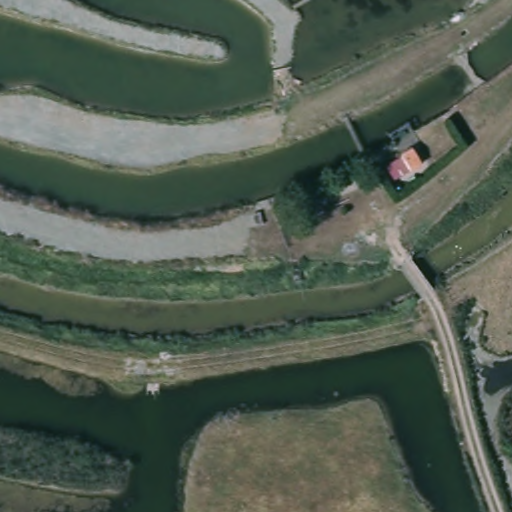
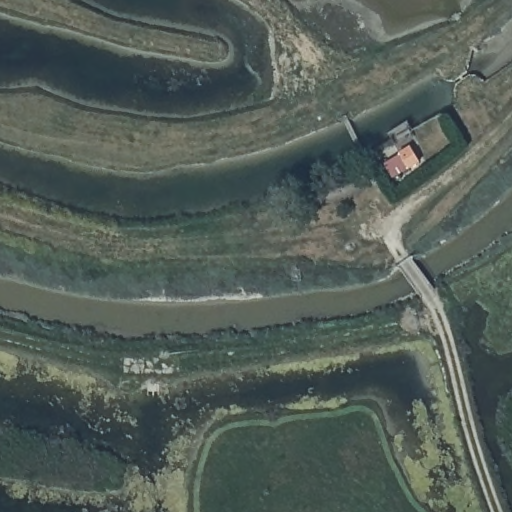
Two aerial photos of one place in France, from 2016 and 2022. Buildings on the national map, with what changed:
unchanged [(421,162),(391,179),(382,164),(398,154),(397,152),(410,144),(421,162)]

